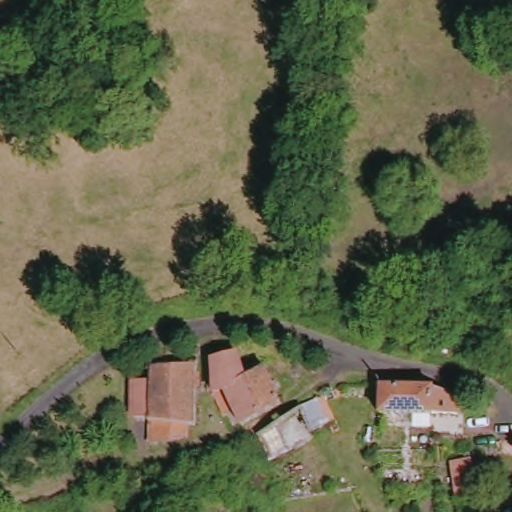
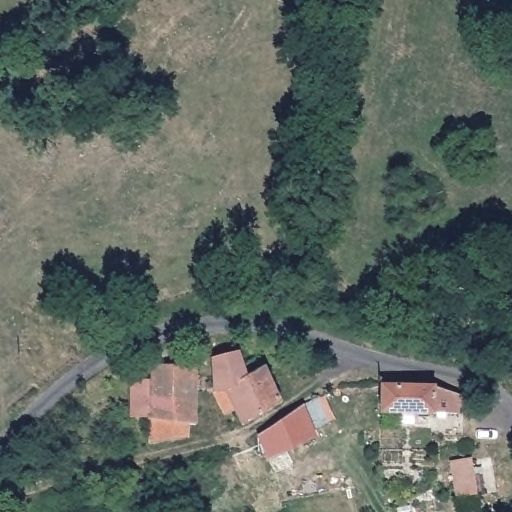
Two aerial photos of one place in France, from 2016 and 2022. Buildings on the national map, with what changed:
unchanged [(236,352),(238,377),(263,375),(270,416),(229,423),(225,388),(210,390),(208,353),(236,352)]
unchanged [(149,363),(192,362),(193,417),(171,418),(171,437),(151,441),(149,363)]
unchanged [(431,377),(441,377),(447,412),(381,417),(378,385),(431,377)]
unchanged [(256,458),(248,440),(314,394),(326,422),(256,458)]
unchanged [(481,489),(461,494),(451,452),(472,448),(481,489)]

